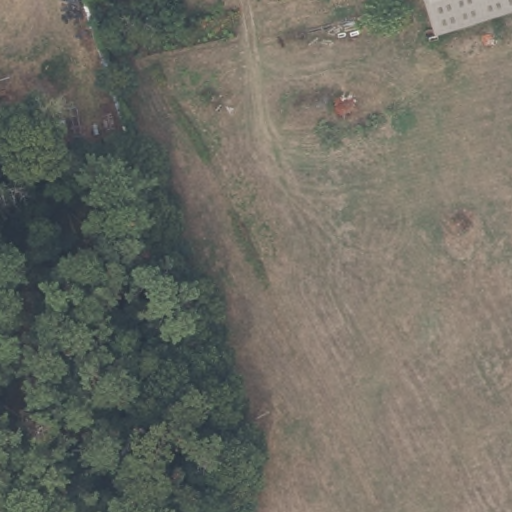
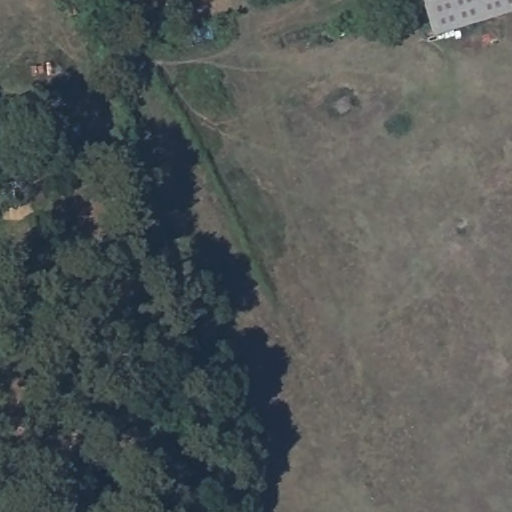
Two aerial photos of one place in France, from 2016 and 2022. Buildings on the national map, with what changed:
unchanged [(429,36),(419,0),(512,0),(512,10),(429,36)]

